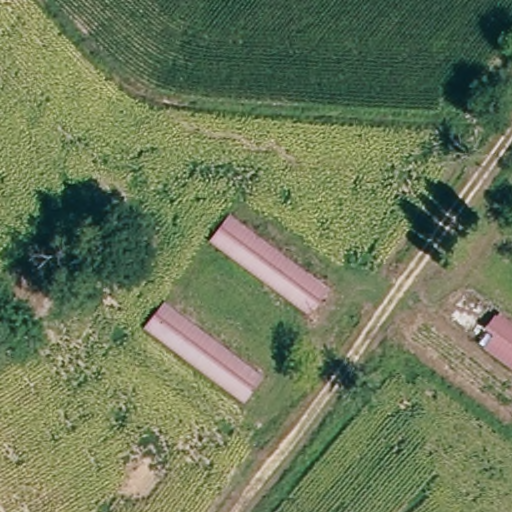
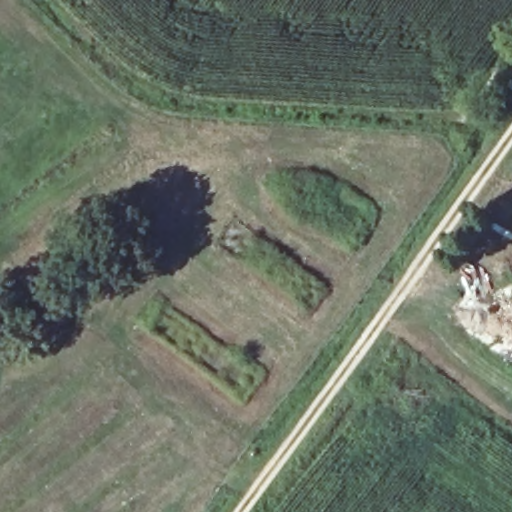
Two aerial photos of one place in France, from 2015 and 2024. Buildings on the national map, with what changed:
demolished [(332,288),(311,313),(215,239),(235,214),(332,288)]
unchanged [(446,320),(469,289),(512,322),(512,370),(446,320)]
demolished [(263,380),(245,404),(148,328),(168,306),(263,380)]

